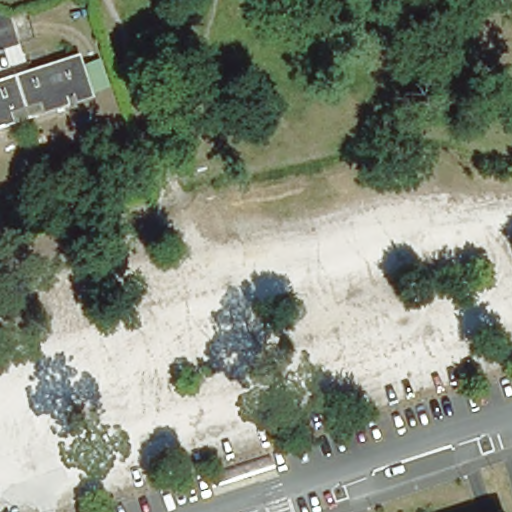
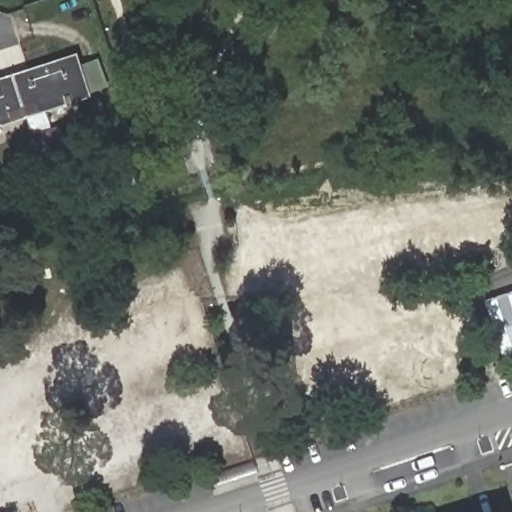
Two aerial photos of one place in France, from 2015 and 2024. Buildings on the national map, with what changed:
unchanged [(85,99),(73,103),(73,109),(68,110),(66,105),(0,126),(0,81),(73,58),(85,99)]
new [(512,291),(512,354),(502,357),(486,300),(512,291)]

